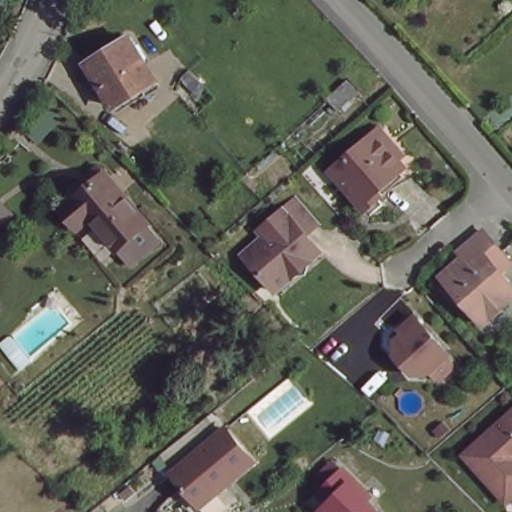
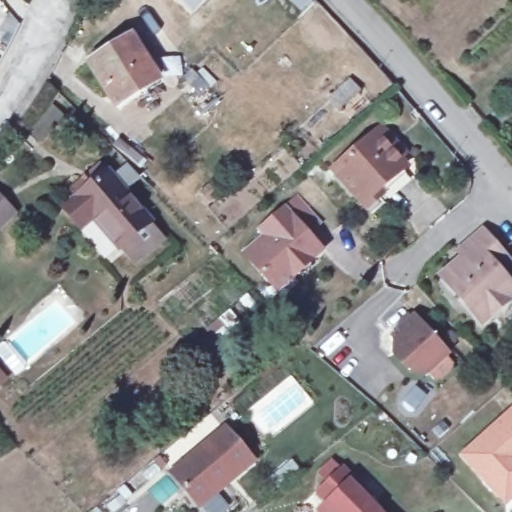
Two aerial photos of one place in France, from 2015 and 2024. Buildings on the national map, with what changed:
new [(175,0),(201,0),(190,13),(175,0)]
unchanged [(157,74),(117,105),(88,64),(128,34),(157,74)]
unchanged [(365,208),(331,169),(373,133),(380,127),(401,153),(395,159),(406,172),(365,208)]
unchanged [(162,240),(132,265),(126,259),(118,249),(91,217),(84,223),(78,228),(62,209),(69,204),(75,199),(69,190),(100,165),(149,224),(156,234),(162,240)]
unchanged [(0,218),(0,193),(13,205),(0,218)]
unchanged [(266,283),(242,256),(287,216),(283,211),(295,202),(312,221),(301,230),(321,253),(290,279),(275,293),(266,283)]
unchanged [(510,259),(500,269),(506,275),(494,287),(505,299),(482,320),(439,275),(462,254),(458,249),(482,229),(510,259)]
unchanged [(452,354),(424,379),(410,379),(394,360),(400,342),(396,338),(420,318),(452,354)]
new [(0,384),(0,380),(2,383),(0,384)]
unchanged [(501,503),(459,456),(512,409),(512,493),(501,503)]
unchanged [(251,460),(197,504),(172,473),(226,430),(251,460)]
unchanged [(370,491),(366,495),(382,512),(323,512),(322,511),(332,501),(321,490),(334,478),(325,468),(336,459),(344,468),(345,467),(370,491)]

